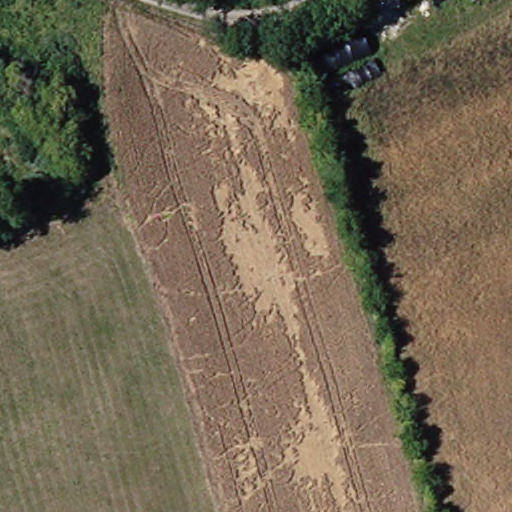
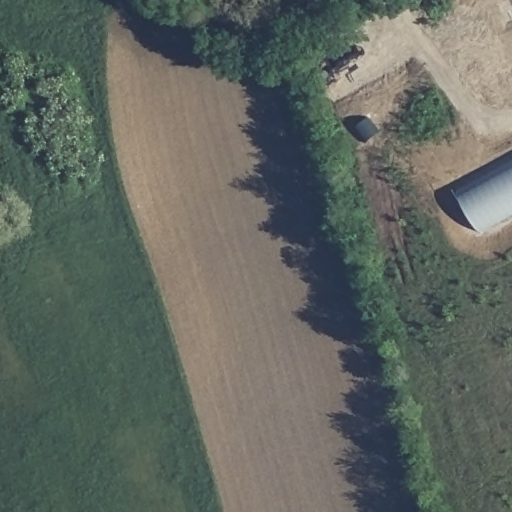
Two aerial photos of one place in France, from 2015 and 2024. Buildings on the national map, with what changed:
unchanged [(314,56),(360,37),(370,59),(326,79),(314,56)]
new [(480,235),(454,187),(512,156),(512,219),(480,235)]

